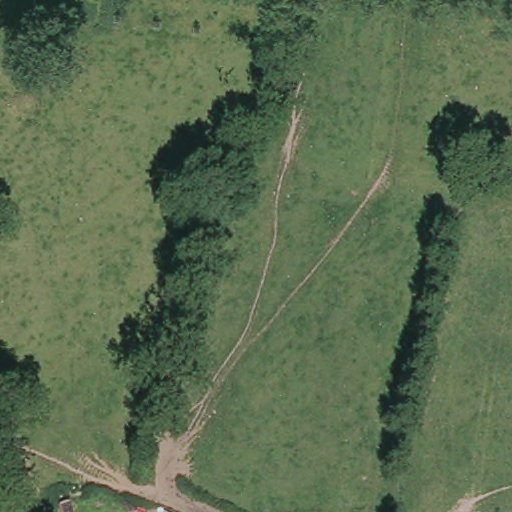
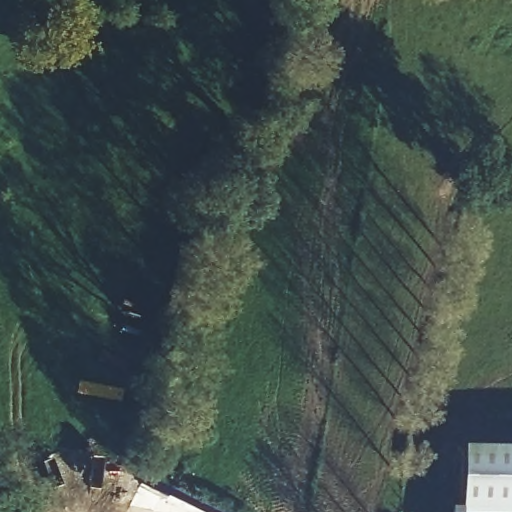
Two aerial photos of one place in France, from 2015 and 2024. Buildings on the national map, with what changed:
new [(449,510),(460,510),(461,450),(512,451),(512,512),(449,512),(449,510)]

